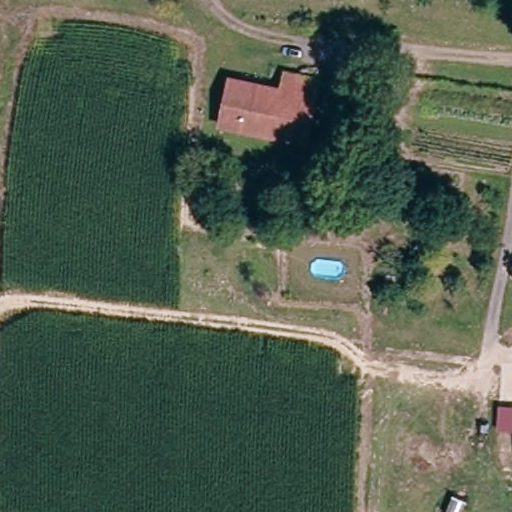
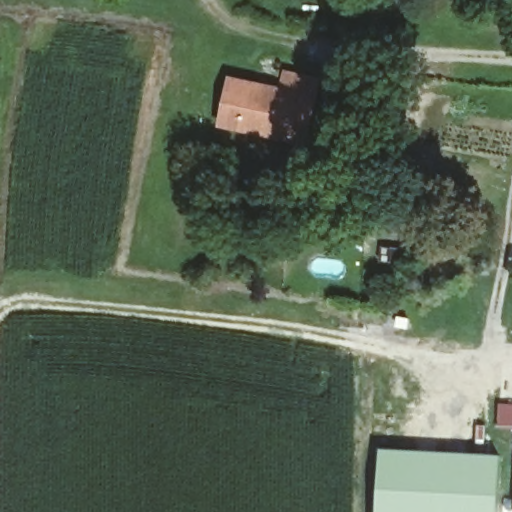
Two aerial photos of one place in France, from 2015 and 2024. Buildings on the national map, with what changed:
unchanged [(285,135),(223,123),(232,80),(278,89),(282,70),(317,77),(315,91),(303,140),(285,135)]
new [(379,449),(501,457),(499,512),(375,512),(379,449)]

